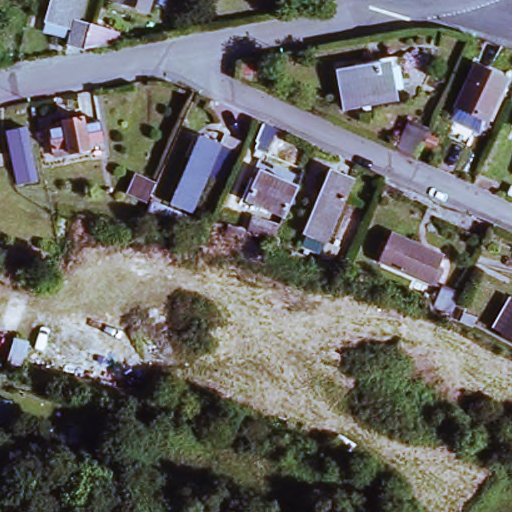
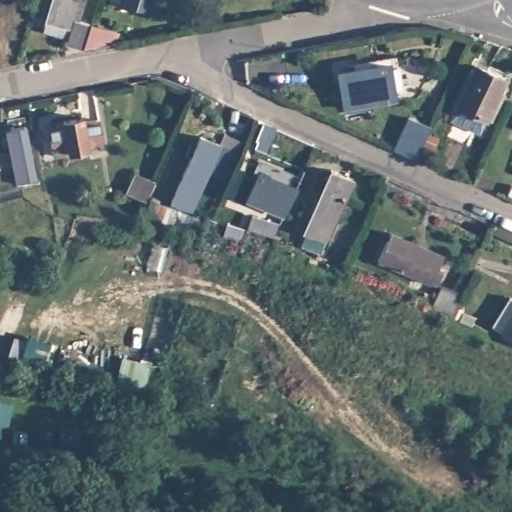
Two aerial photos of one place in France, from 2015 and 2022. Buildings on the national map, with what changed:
unchanged [(79,49),(64,45),(65,40),(40,32),(43,22),(49,0),(79,0),(73,21),(86,25),(112,33),(110,43),(79,49)]
unchanged [(144,11),(110,0),(147,0),(144,11)]
unchanged [(470,60),(500,73),(494,87),(500,90),(482,129),(447,112),(451,102),(470,60)]
unchanged [(239,79),(241,63),(252,65),(251,81),(239,79)]
unchanged [(340,109),(333,72),(382,63),(383,67),(392,66),(395,83),(387,85),(390,100),(340,109)]
unchanged [(95,118),(98,136),(85,139),(86,145),(52,151),(47,125),(52,124),(52,118),(80,114),(81,120),(95,118)]
unchanged [(416,154),(396,145),(409,117),(429,125),(416,154)]
unchanged [(267,153),(257,149),(265,128),(275,132),(267,153)]
unchanged [(22,129),(32,180),(19,183),(9,132),(22,129)]
unchanged [(216,129),(232,136),(198,212),(162,196),(192,131),(212,139),(216,129)]
unchanged [(150,199),(129,190),(139,167),(160,176),(150,199)]
unchanged [(255,167),(291,182),(280,211),(243,196),(255,167)]
unchanged [(348,179),(331,220),(322,242),(301,233),(327,170),(348,179)]
unchanged [(167,228),(146,219),(153,202),(175,211),(167,228)]
unchanged [(250,230),(254,217),(280,225),(275,238),(250,230)]
unchanged [(231,227),(244,231),(240,240),(227,236),(231,227)]
unchanged [(427,279),(375,256),(384,236),(387,228),(422,244),(439,251),(427,279)]
unchanged [(462,288),(452,309),(436,301),(445,280),(462,288)]
unchanged [(502,334),(502,333),(492,327),(509,296),(512,298),(512,341),(502,334)]
unchanged [(463,314),(475,319),(472,326),(460,321),(463,314)]

